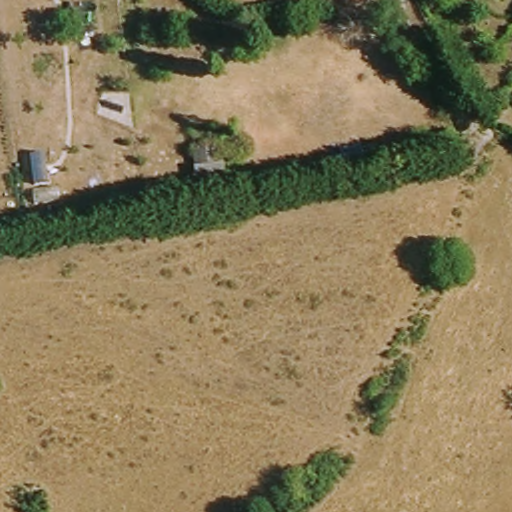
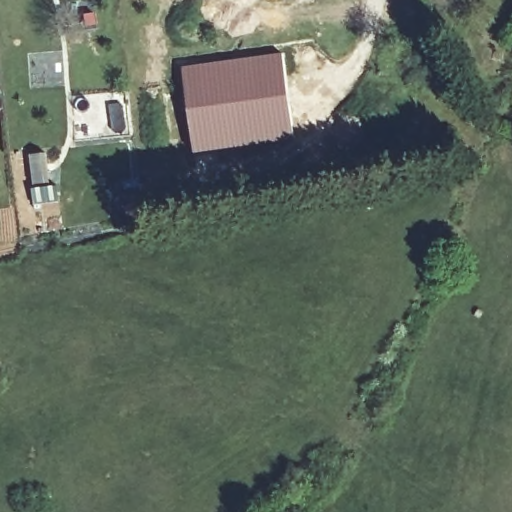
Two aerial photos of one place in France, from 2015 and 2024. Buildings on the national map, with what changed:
new [(282,52),(294,140),(192,154),(181,66),(282,52)]
demolished [(222,141),(230,177),(196,182),(190,147),(222,141)]
new [(50,154),(52,186),(31,187),(28,157),(50,154)]

